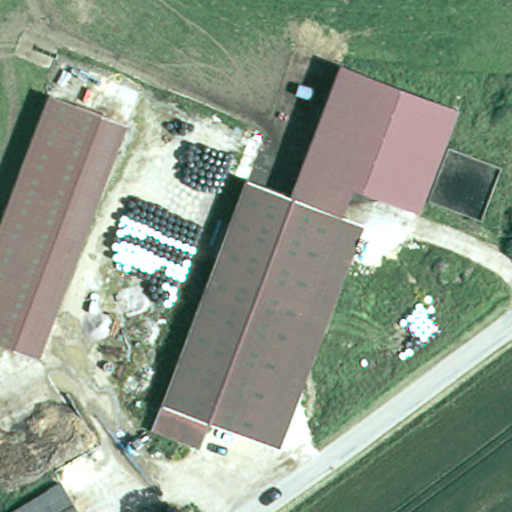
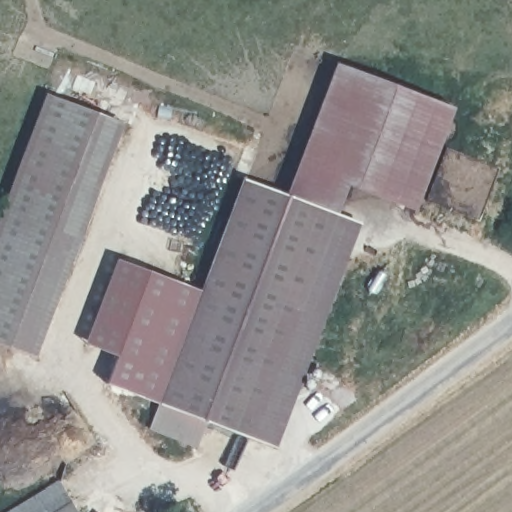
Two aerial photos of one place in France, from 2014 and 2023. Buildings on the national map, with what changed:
unchanged [(300,201),(347,73),(455,114),(421,205),(358,182),(346,218),(300,201)]
unchanged [(47,95),(124,123),(37,360),(0,346),(0,223),(47,95)]
unchanged [(207,294),(248,181),(300,201),(346,218),(366,225),(283,451),(213,423),(166,404),(207,294)]
new [(166,404),(122,388),(133,363),(98,347),(127,265),(207,294),(166,404)]
unchanged [(203,450),(156,431),(166,404),(213,423),(203,450)]
unchanged [(81,512),(6,512),(61,479),(81,512)]

